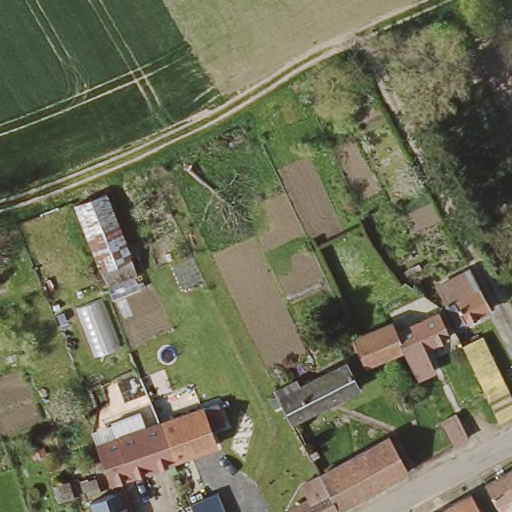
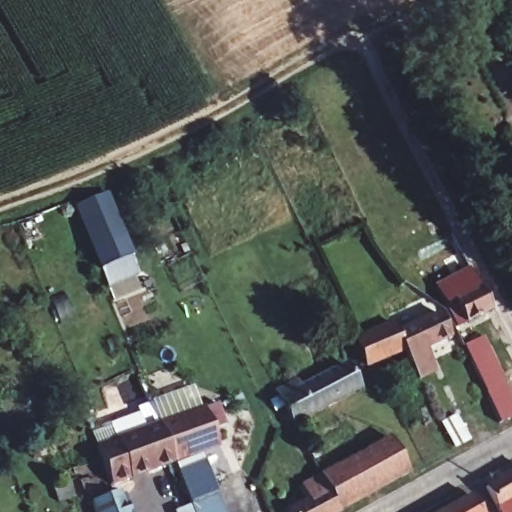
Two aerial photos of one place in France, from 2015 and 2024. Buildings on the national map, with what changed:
unchanged [(104,192),(135,274),(105,285),(74,204),(104,192)]
unchanged [(458,323),(437,284),(468,267),(488,307),(458,323)]
unchanged [(449,335),(406,355),(402,347),(395,329),(439,310),(449,335)]
unchanged [(366,363),(355,338),(392,322),(395,329),(402,347),(366,363)]
unchanged [(498,421),(485,392),(463,344),(482,335),(504,382),(512,399),(512,414),(498,421)]
unchanged [(300,384),(303,390),(350,367),(362,391),(297,424),(281,394),(300,384)]
unchanged [(216,408),(230,444),(188,459),(174,423),(216,408)]
unchanged [(445,422),(462,413),(473,435),(456,445),(445,422)]
unchanged [(174,423),(188,459),(132,479),(128,481),(126,482),(120,468),(111,445),(120,442),(123,441),(174,423)]
unchanged [(384,434),(404,470),(333,509),(315,473),(384,434)]
unchanged [(512,472),(512,512),(501,512),(487,486),(512,472)]
unchanged [(307,494),(299,482),(315,473),(333,509),(328,512),(284,512),(282,508),(307,494)]
unchanged [(73,495),(57,501),(52,486),(68,480),(73,495)]
unchanged [(131,512),(100,512),(96,500),(120,491),(123,490),(131,512)]
unchanged [(483,512),(435,512),(471,491),(483,512)]
unchanged [(217,512),(194,512),(191,505),(211,497),(217,512)]

